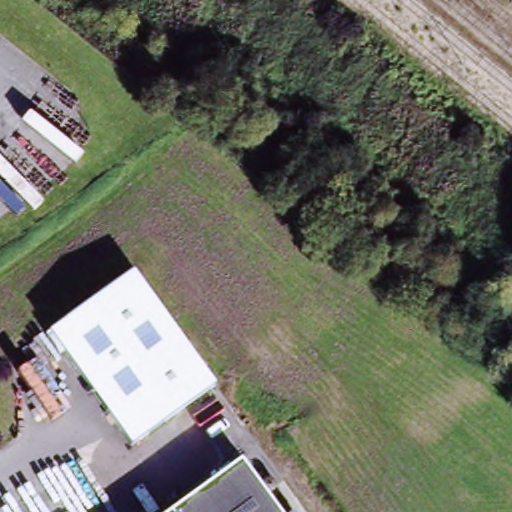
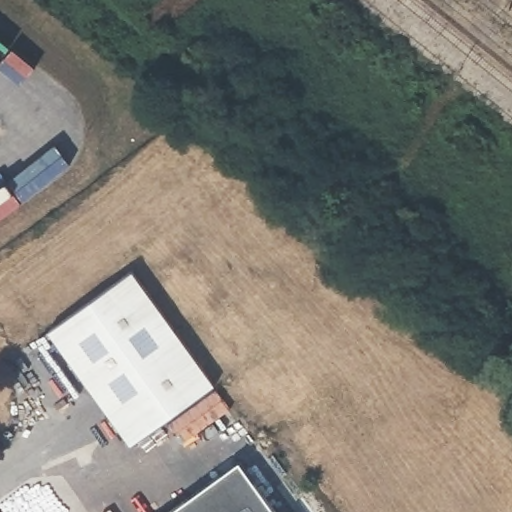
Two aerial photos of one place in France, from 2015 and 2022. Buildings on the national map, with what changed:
unchanged [(215,390),(132,450),(49,334),(132,275),(215,390)]
unchanged [(278,512),(167,512),(240,460),(278,512)]

